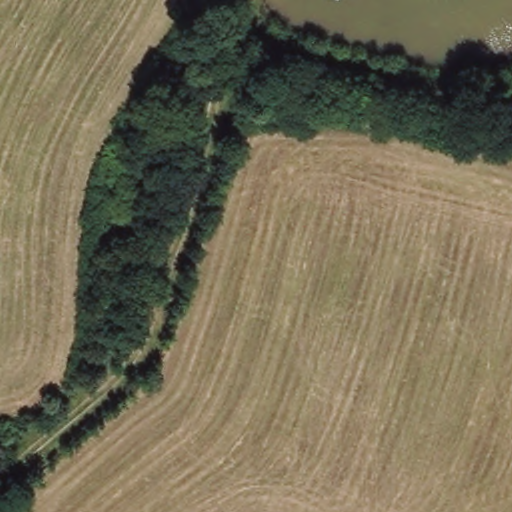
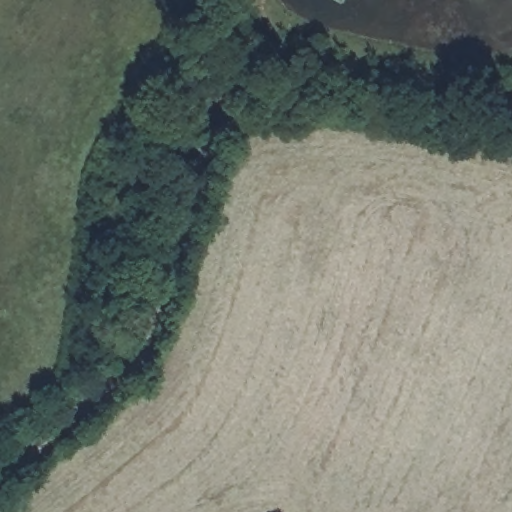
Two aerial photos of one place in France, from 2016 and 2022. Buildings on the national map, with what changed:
unchanged [(507,100),(512,100),(512,123),(501,121),(507,100)]

